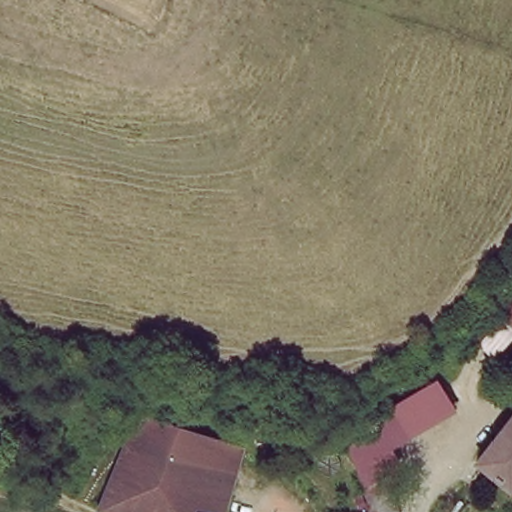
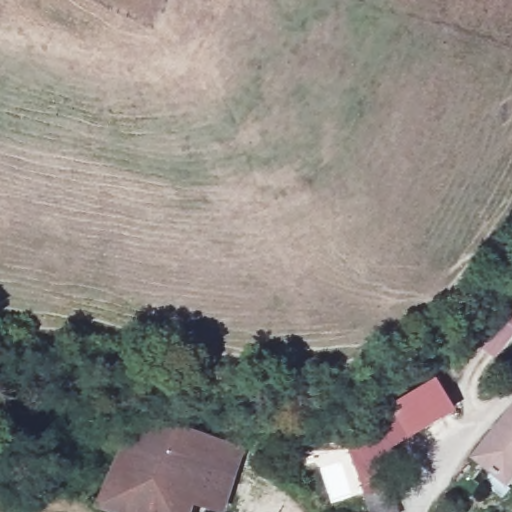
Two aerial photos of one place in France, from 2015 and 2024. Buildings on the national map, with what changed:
unchanged [(512,315),(512,326),(506,322),(512,315)]
unchanged [(439,383),(456,407),(390,454),(386,441),(406,428),(395,412),(439,383)]
unchanged [(409,512),(369,512),(343,451),(380,433),(379,422),(395,412),(406,428),(386,441),(390,454),(409,512)]
unchanged [(512,482),(509,485),(476,458),(512,412),(512,482)]
unchanged [(173,462),(179,440),(152,431),(161,413),(255,436),(239,484),(173,462)]
unchanged [(179,440),(173,462),(239,484),(230,512),(214,512),(196,506),(194,512),(105,512),(101,510),(148,437),(152,431),(179,440)]

